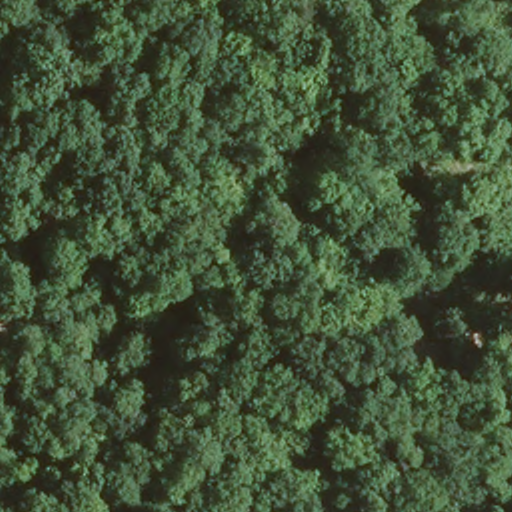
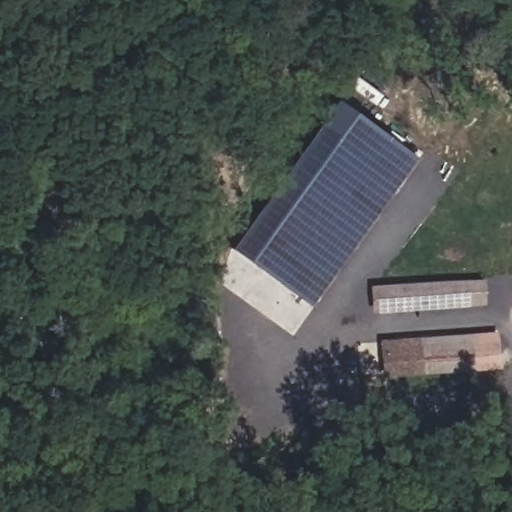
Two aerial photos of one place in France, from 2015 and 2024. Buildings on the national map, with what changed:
new [(228,247),(335,100),(417,159),(311,306),(228,247)]
new [(481,277),(483,303),(370,312),(368,285),(481,277)]
demolished [(371,313),(376,321),(383,321),(386,326),(374,329),(376,339),(389,338),(389,333),(398,333),(399,336),(417,334),(419,340),(428,339),(430,354),(422,365),(417,371),(358,379),(348,328),(356,315),(371,313)]
new [(502,372),(385,378),(385,347),(503,338),(502,372)]

